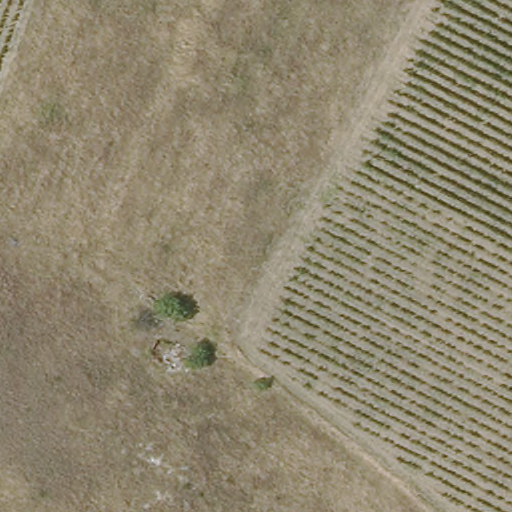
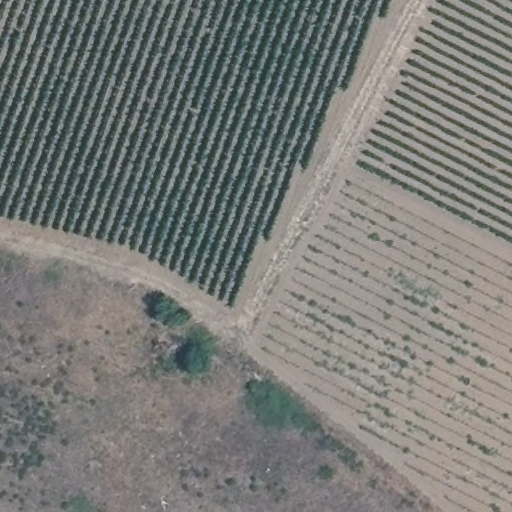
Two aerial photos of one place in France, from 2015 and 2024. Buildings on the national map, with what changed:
unchanged [(157,339),(184,353),(180,367),(152,355),(157,339)]

